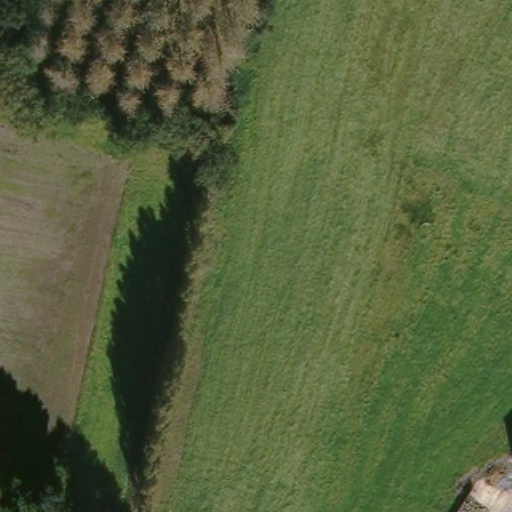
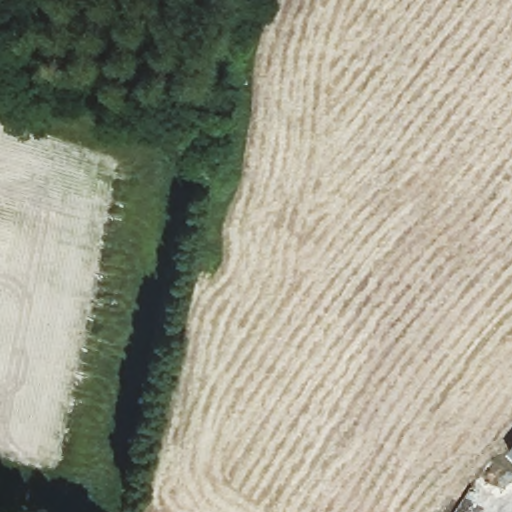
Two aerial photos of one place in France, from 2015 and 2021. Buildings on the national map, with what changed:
[]

